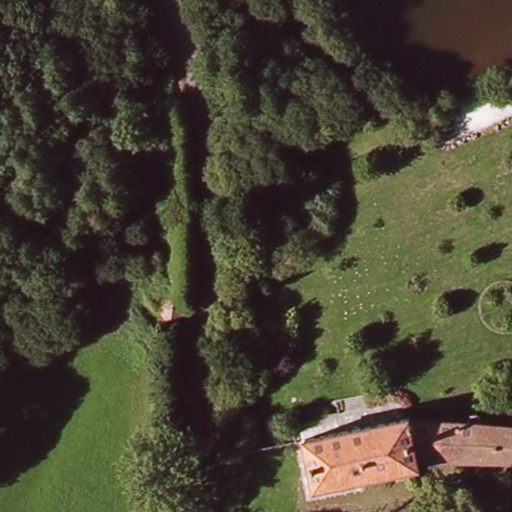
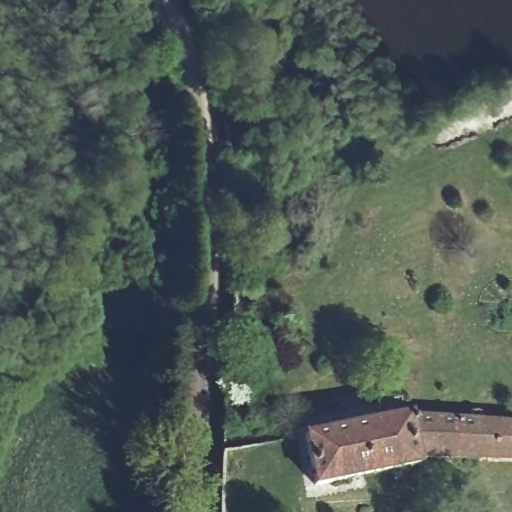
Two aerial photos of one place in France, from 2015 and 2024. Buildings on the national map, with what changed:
unchanged [(414,420),(417,459),(417,471),(316,487),(307,436),(414,416),(414,420)]
unchanged [(482,425),(481,460),(417,459),(414,420),(482,425)]
unchanged [(512,426),(512,460),(481,460),(482,425),(512,426)]

